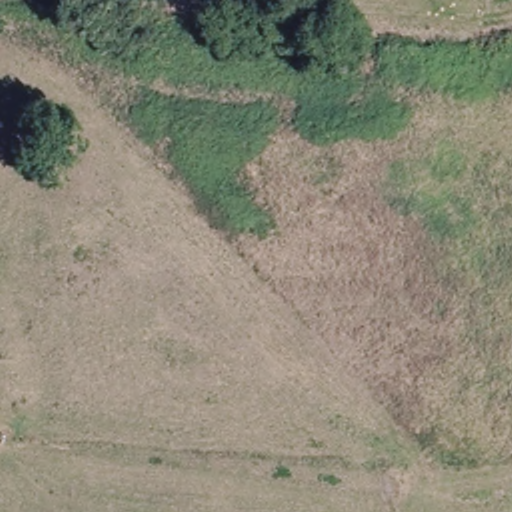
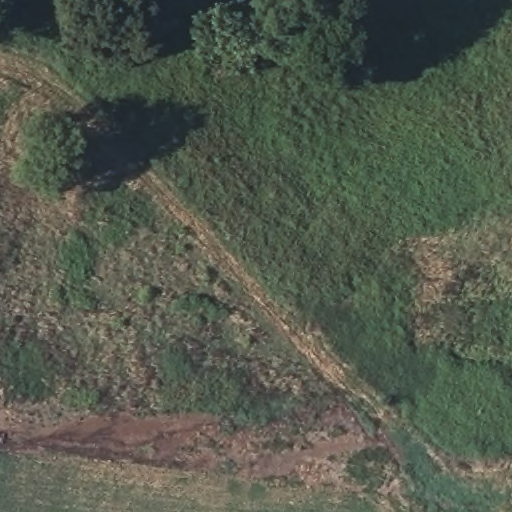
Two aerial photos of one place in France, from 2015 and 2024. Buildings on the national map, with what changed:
[]

